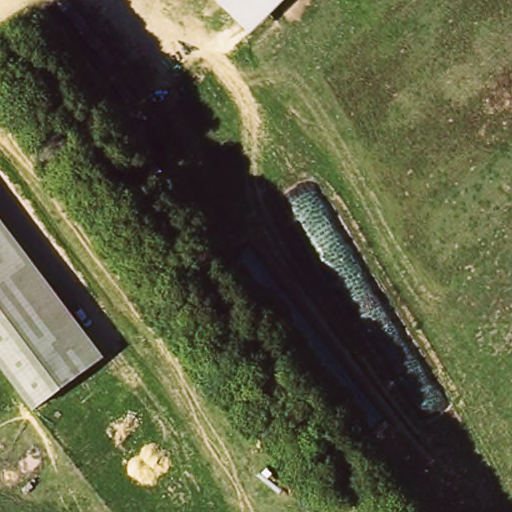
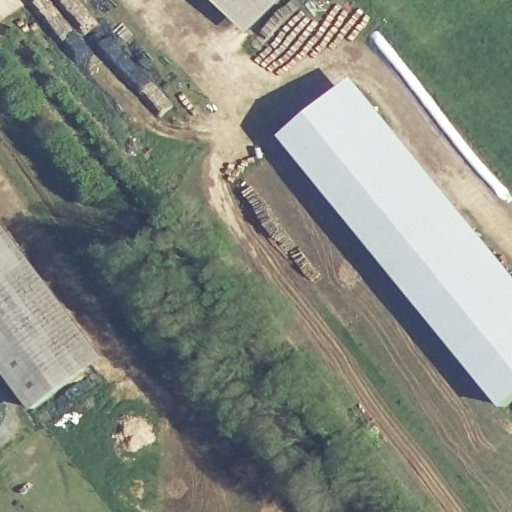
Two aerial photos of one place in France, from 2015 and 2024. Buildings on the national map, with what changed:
unchanged [(216,0),(288,0),(252,36),(216,0)]
new [(507,408),(284,136),(357,78),(512,267),(512,404),(507,408)]
unchanged [(87,369),(32,409),(0,364),(0,215),(102,358),(87,369)]

